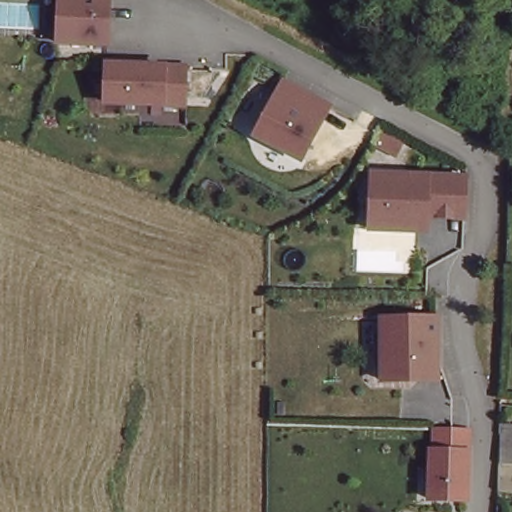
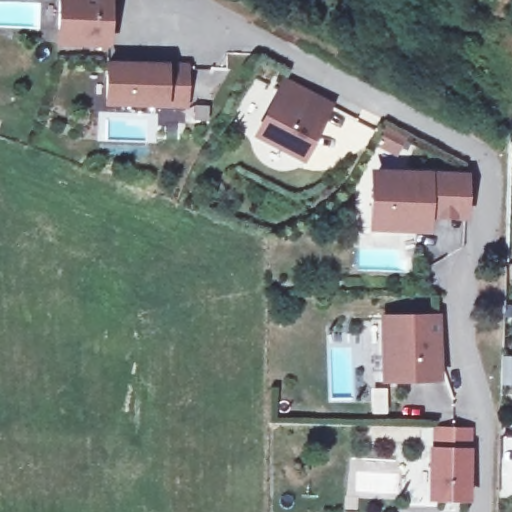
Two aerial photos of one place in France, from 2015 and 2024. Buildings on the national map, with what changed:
unchanged [(53,27),(55,0),(105,0),(103,29),(101,42),(65,39),(52,38),(53,27)]
unchanged [(143,58),(183,60),(182,98),(105,94),(105,56),(143,58)]
unchanged [(326,101),(317,118),(298,153),(253,128),(280,76),(319,97),(326,101)]
unchanged [(373,169),(461,171),(461,174),(461,181),(461,189),(461,195),(461,198),(461,211),(452,211),(424,211),(424,226),(387,225),(373,225),(373,197),(373,169)]
unchanged [(414,376),(387,377),(387,346),(386,334),(386,314),(441,313),(441,348),(423,348),(423,366),(423,376),(414,376)]
unchanged [(471,502),(426,501),(428,445),(432,445),(433,428),(473,428),(471,502)]

